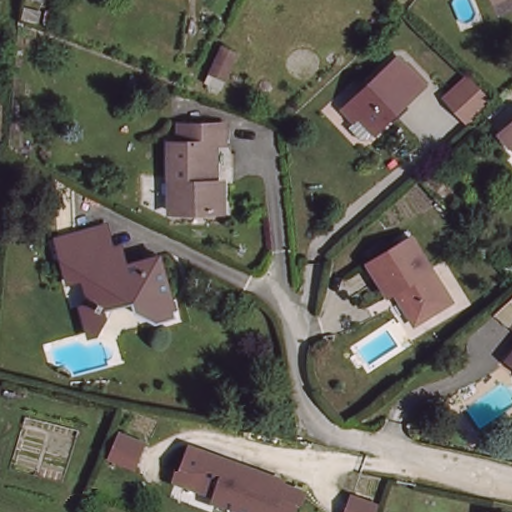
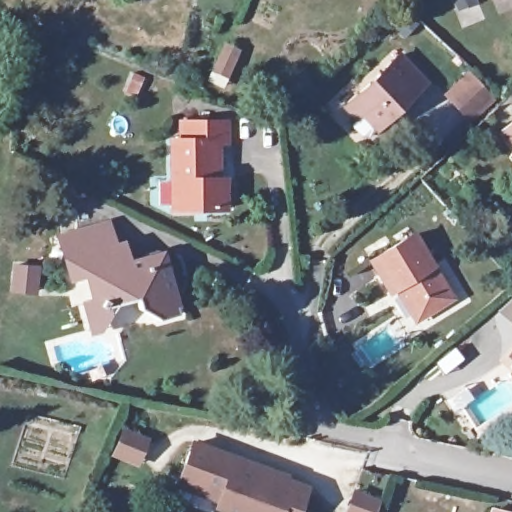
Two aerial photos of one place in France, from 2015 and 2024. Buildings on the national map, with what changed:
unchanged [(493,0),(510,0),(495,5),(493,0)]
unchanged [(369,132),(342,105),(391,60),(416,87),(369,132)]
unchanged [(493,94),(465,118),(440,89),(465,66),(493,94)]
unchanged [(497,126),(512,114),(512,140),(509,140),(497,126)]
unchanged [(170,210),(168,142),(180,141),(179,126),(223,125),(223,146),(213,146),(215,184),(222,183),(223,209),(170,210)]
unchanged [(64,263),(57,235),(104,223),(107,231),(113,251),(94,256),(99,275),(154,260),(172,322),(152,328),(132,316),(129,307),(98,316),(90,312),(83,281),(66,286),(58,265),(64,263)]
unchanged [(405,315),(398,300),(390,304),(365,262),(409,235),(448,297),(424,313),(409,322),(405,315)]
unchanged [(512,355),(512,361),(509,359),(512,355)]
unchanged [(143,435),(133,460),(109,450),(119,425),(143,435)]
unchanged [(272,475),(284,480),(285,476),(308,484),(298,512),(241,512),(217,503),(220,496),(196,488),(199,480),(181,474),(189,452),(192,453),(194,453),(197,453),(200,452),(202,450),(204,448),(206,446),(208,443),(230,452),(228,459),(239,463),(242,456),(275,468),(272,475)]
unchanged [(374,512),(346,512),(355,487),(380,495),(374,512)]
unchanged [(512,509),(512,512),(489,512),(491,503),(512,509)]

